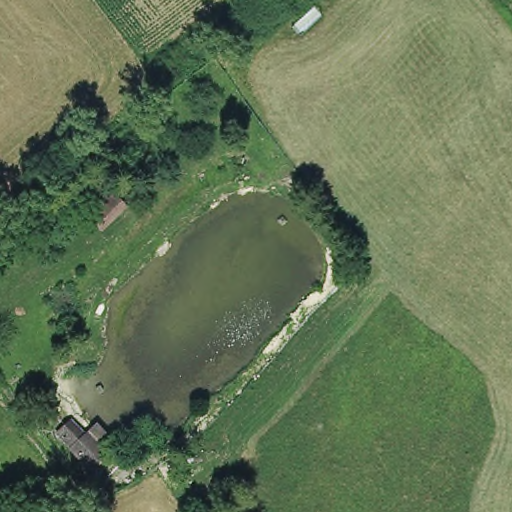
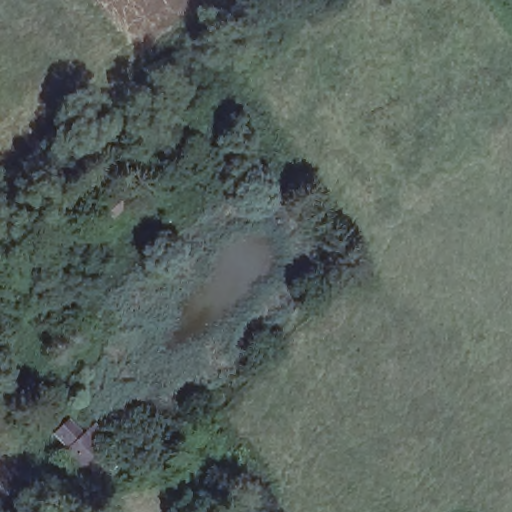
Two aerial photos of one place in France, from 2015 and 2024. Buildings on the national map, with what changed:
unchanged [(109,181),(132,200),(99,227),(81,206),(109,181)]
unchanged [(102,460),(97,454),(80,465),(52,428),(70,416),(82,430),(96,418),(117,445),(102,460)]

